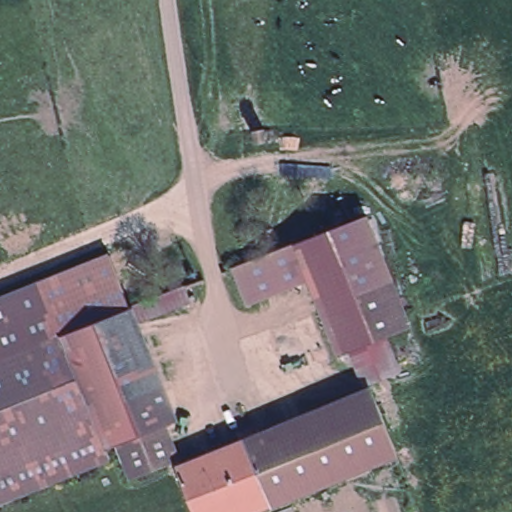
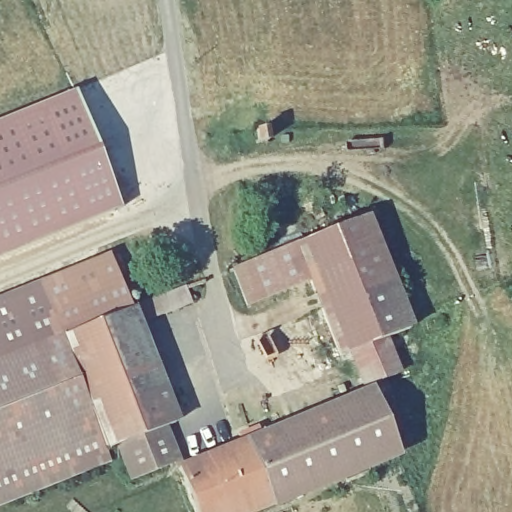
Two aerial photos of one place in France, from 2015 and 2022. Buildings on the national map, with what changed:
new [(121,209),(0,257),(0,121),(73,91),(121,209)]
unchanged [(250,178),(246,191),(233,189),(237,175),(250,178)]
unchanged [(370,216),(413,327),(398,333),(355,350),(340,356),(311,281),(297,244),(370,216)]
unchanged [(247,305),(235,269),(297,244),(311,281),(247,305)]
unchanged [(160,425),(115,442),(102,448),(61,341),(0,364),(0,301),(111,257),(133,311),(185,289),(190,300),(137,322),(175,420),(160,425)]
unchanged [(398,333),(410,361),(365,378),(355,350),(398,333)]
unchanged [(61,341),(102,448),(107,465),(81,475),(28,496),(0,507),(0,364),(61,341)]
unchanged [(239,440),(236,431),(257,424),(260,432),(373,389),(398,450),(272,500),(242,512),(192,512),(175,465),(239,440)]
unchanged [(160,425),(171,456),(127,473),(115,442),(160,425)]

